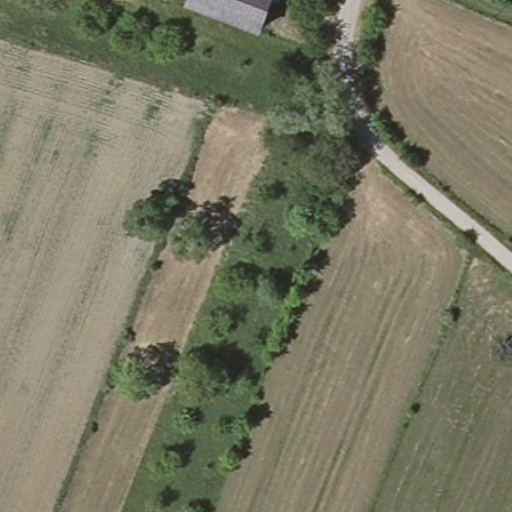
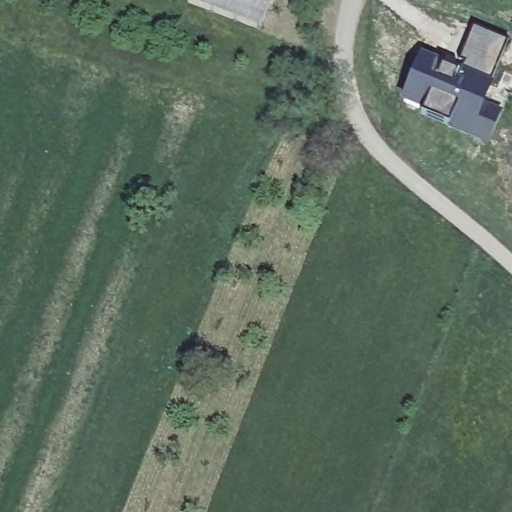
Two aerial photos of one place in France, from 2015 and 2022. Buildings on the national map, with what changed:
unchanged [(259,30),(188,3),(189,0),(271,0),(259,30)]
new [(506,40),(491,83),(508,92),(488,146),(399,105),(420,55),(442,64),(447,53),(460,58),(472,26),(506,40)]

